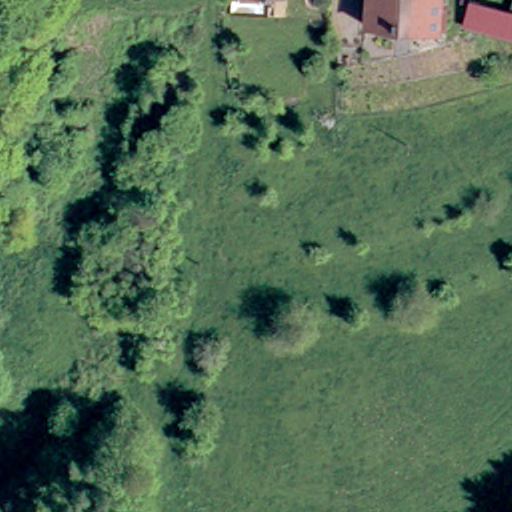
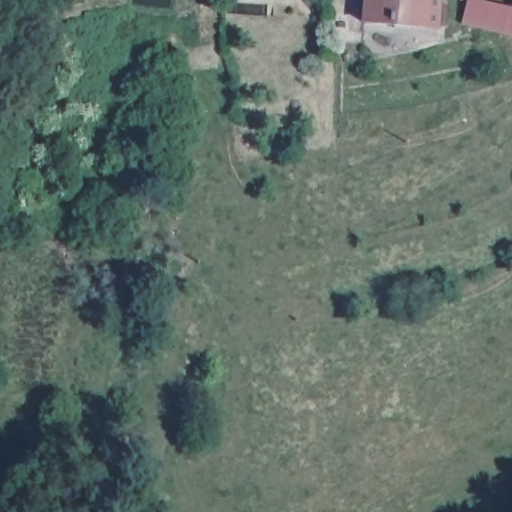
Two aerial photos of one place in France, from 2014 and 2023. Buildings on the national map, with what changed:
unchanged [(423,5),(430,6),(428,31),(352,22),(355,0),(423,0),(423,5)]
unchanged [(451,30),(450,1),(462,1),(512,0),(512,28),(475,30),(451,30)]

